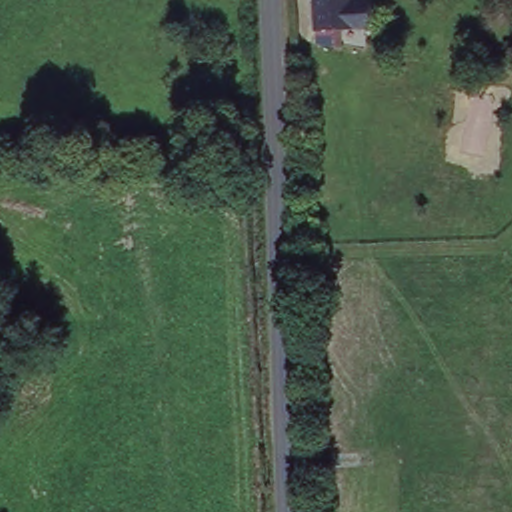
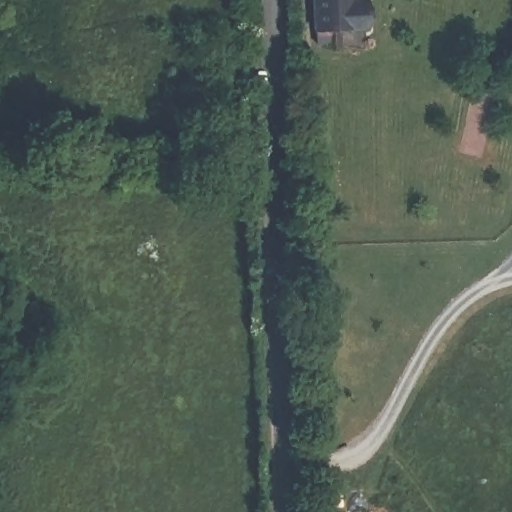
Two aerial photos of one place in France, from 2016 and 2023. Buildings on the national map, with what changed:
unchanged [(354,0),(354,3),(371,3),(373,26),(320,30),(319,0),(354,0)]

